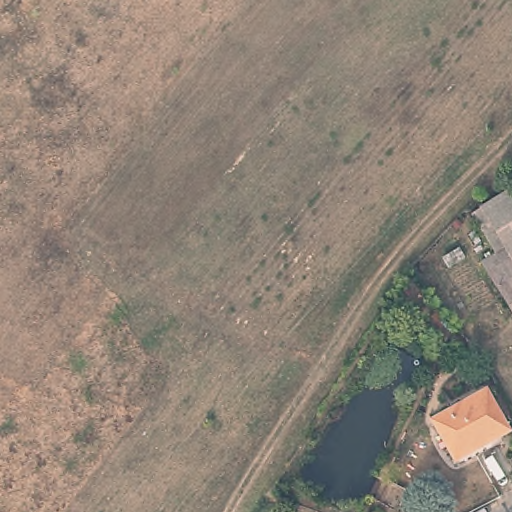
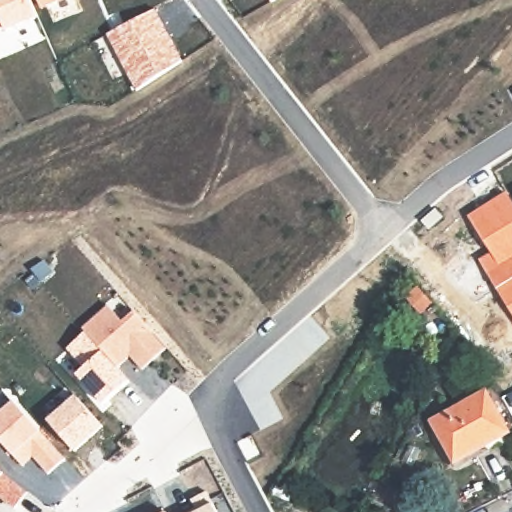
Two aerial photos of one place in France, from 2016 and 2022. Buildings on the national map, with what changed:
new [(7,30),(5,27),(0,28),(0,0),(32,0),(40,16),(7,30)]
new [(37,0),(55,0),(40,7),(37,0)]
new [(156,9),(183,60),(136,90),(107,34),(156,9)]
unchanged [(483,261),(497,252),(476,215),(487,208),(497,202),(512,195),(512,311),(483,261)]
new [(87,332),(82,327),(108,305),(122,321),(134,311),(167,346),(141,367),(130,356),(119,366),(131,380),(104,403),(78,372),(85,366),(67,349),(87,332)]
unchanged [(510,431),(454,462),(431,420),(486,390),(510,431)]
new [(75,395),(103,427),(75,451),(49,418),(75,395)]
new [(42,430),(64,458),(47,472),(32,455),(22,465),(14,456),(0,440),(0,412),(14,401),(42,430)]
new [(27,491),(15,507),(0,496),(0,472),(3,474),(27,491)]
new [(195,507),(192,500),(207,490),(214,502),(219,512),(186,512),(195,507)]
new [(168,512),(163,512),(167,510),(168,512)]

